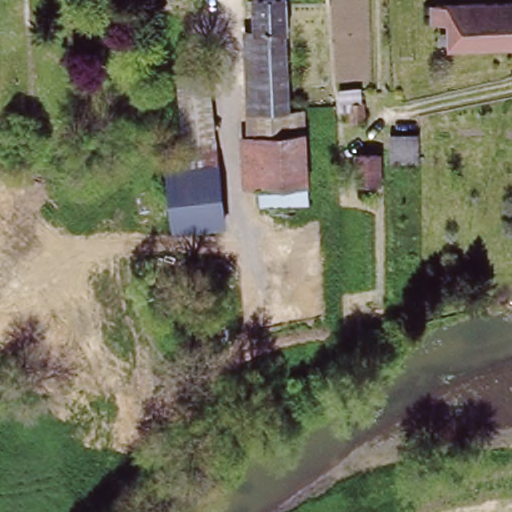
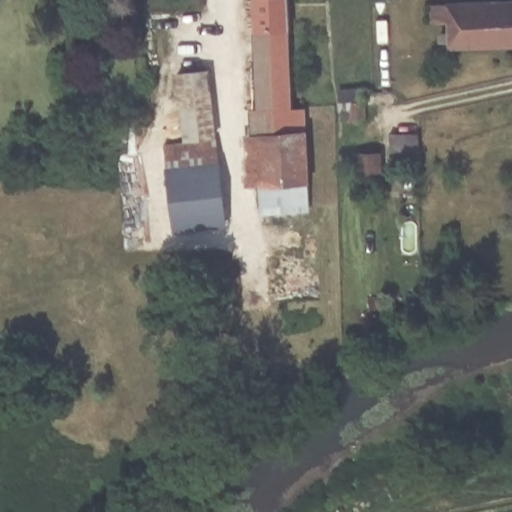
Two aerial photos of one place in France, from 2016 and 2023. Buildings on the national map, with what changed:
unchanged [(264,105),(262,0),(294,0),(295,105),(264,105)]
unchanged [(451,17),(434,17),(435,1),(451,0),(512,0),(512,40),(451,42),(451,17)]
unchanged [(183,71),(213,69),(218,135),(187,136),(183,71)]
unchanged [(310,104),(310,199),(266,200),(264,105),(295,105),(310,104)]
unchanged [(355,124),(340,125),(338,111),(354,110),(355,124)]
unchanged [(392,162),(393,122),(426,121),(425,162),(392,162)]
unchanged [(171,142),(218,139),(226,223),(176,226),(171,142)]
unchanged [(363,155),(381,154),(381,182),(363,182),(363,171),(363,155)]

